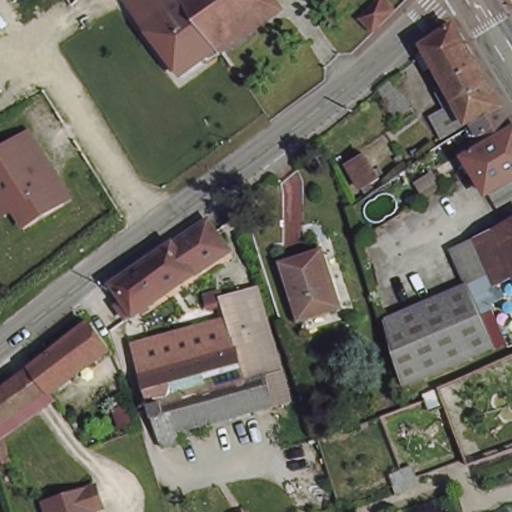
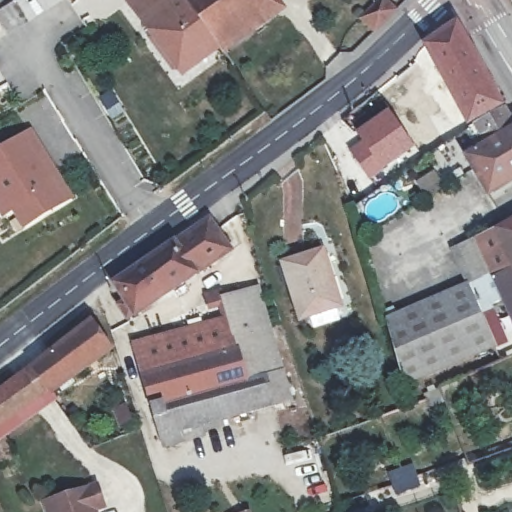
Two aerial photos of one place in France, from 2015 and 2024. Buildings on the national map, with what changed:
unchanged [(128,0),(184,0),(187,5),(149,30),(128,0)]
unchanged [(187,5),(184,0),(195,0),(190,4),(187,5)]
unchanged [(195,0),(270,0),(277,12),(219,51),(187,5),(190,4),(195,0)]
unchanged [(358,19),(375,0),(389,0),(399,10),(377,35),(358,19)]
unchanged [(149,30),(187,5),(219,51),(181,76),(149,30)]
unchanged [(441,81),(421,46),(457,26),(475,63),(441,81)]
unchanged [(495,108),(442,141),(431,121),(445,113),(433,93),(444,87),(441,81),(475,63),(495,108)]
new [(369,181),(349,152),(362,144),(355,134),(386,112),(412,151),(369,181)]
unchanged [(490,195),(472,160),(482,155),(477,147),(512,128),(512,183),(490,195)]
unchanged [(62,176),(74,195),(28,222),(17,205),(7,211),(0,199),(0,150),(35,129),(55,163),(62,176)]
demolished [(369,155),(387,188),(369,197),(351,165),(369,155)]
unchanged [(209,224),(227,251),(123,324),(112,306),(119,302),(112,291),(157,258),(209,224)]
unchanged [(412,390),(402,394),(386,331),(397,325),(474,288),(472,285),(460,252),(480,242),(502,231),(512,226),(512,320),(507,310),(499,314),(488,319),(500,350),(412,390)]
unchanged [(322,250),(336,309),(295,321),(281,261),(322,250)]
unchanged [(216,318),(211,302),(251,290),(284,402),(173,432),(177,444),(158,449),(129,344),(216,318)]
unchanged [(95,333),(114,358),(83,380),(66,356),(95,333)]
unchanged [(66,356),(83,380),(50,404),(34,380),(66,356)]
unchanged [(12,468),(2,472),(0,466),(0,406),(34,380),(50,404),(1,439),(12,468)]
unchanged [(102,409),(97,402),(107,396),(117,390),(121,397),(112,403),(102,409)]
unchanged [(95,481),(102,501),(92,504),(95,512),(48,512),(44,497),(95,481)]

